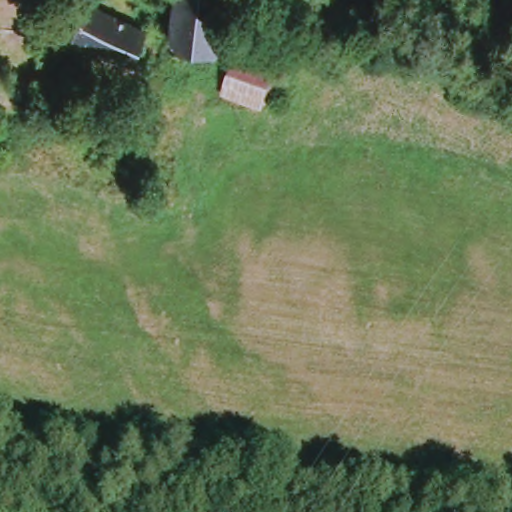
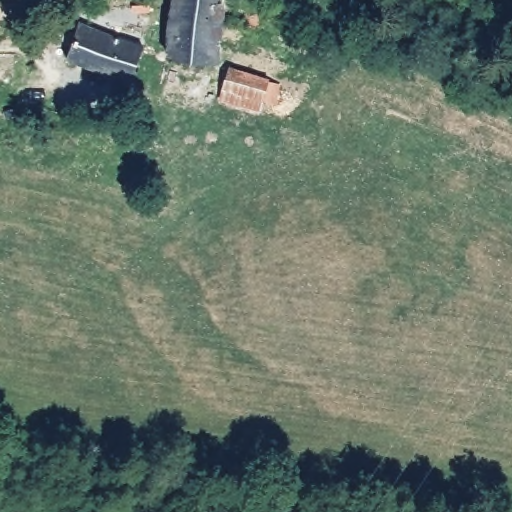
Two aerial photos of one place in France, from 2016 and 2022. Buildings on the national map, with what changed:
unchanged [(224,70),(173,66),(180,0),(231,0),(230,10),(227,25),(224,70)]
unchanged [(137,77),(71,55),(72,47),(64,44),(69,25),(80,27),(84,19),(147,41),(137,77)]
unchanged [(274,107),(260,106),(259,110),(220,100),(230,68),(269,80),(279,85),(274,107)]
unchanged [(67,115),(60,105),(75,93),(84,105),(67,115)]

